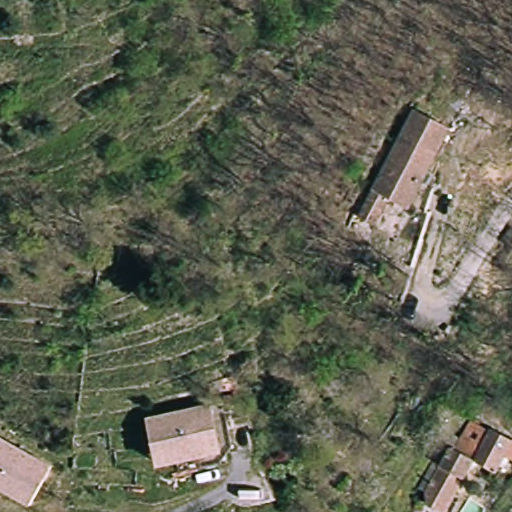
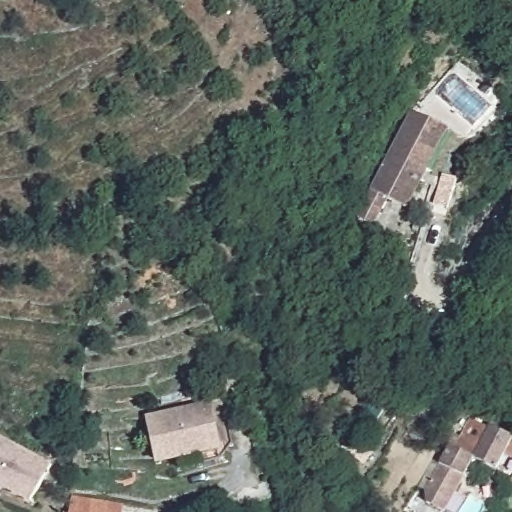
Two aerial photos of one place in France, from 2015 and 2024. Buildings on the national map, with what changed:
unchanged [(411,108),(453,129),(415,207),(373,186),(411,108)]
unchanged [(232,446),(221,460),(183,469),(181,461),(157,467),(145,417),(211,403),(223,400),(232,446)]
unchanged [(464,417),(512,438),(512,450),(501,472),(475,459),(450,512),(445,512),(423,499),(464,417)]
unchanged [(0,503),(0,439),(56,461),(40,503),(6,489),(1,503),(0,503)]
new [(70,512),(72,495),(124,503),(123,512),(70,512)]

